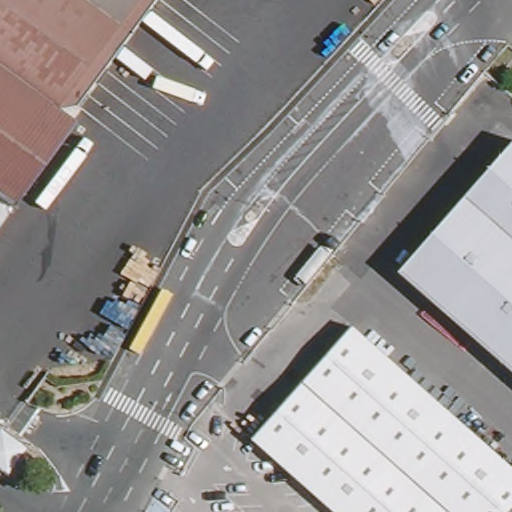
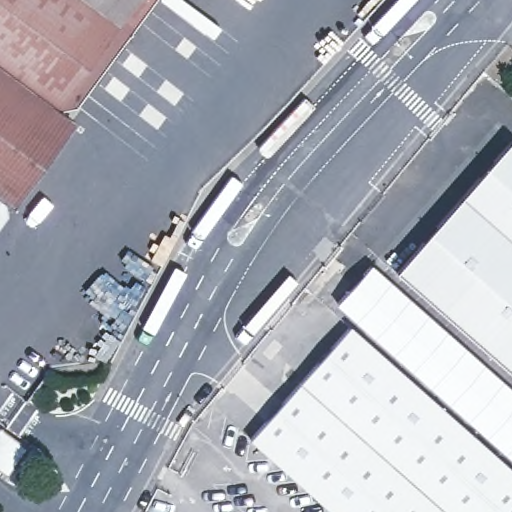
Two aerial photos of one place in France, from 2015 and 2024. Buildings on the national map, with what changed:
unchanged [(110,27),(45,112),(62,126),(0,206),(0,0),(131,0),(110,27)]
unchanged [(110,27),(131,0),(156,0),(125,39),(110,27)]
unchanged [(461,297),(415,255),(512,148),(512,378),(441,317),(461,297)]
unchanged [(398,272),(415,255),(461,297),(441,317),(398,272)]
new [(512,389),(512,459),(337,305),(371,265),(512,389)]
unchanged [(512,502),(503,512),(328,512),(247,444),(344,329),(512,471),(512,502)]
unchanged [(0,464),(0,434),(2,431),(23,448),(7,470),(0,464)]

